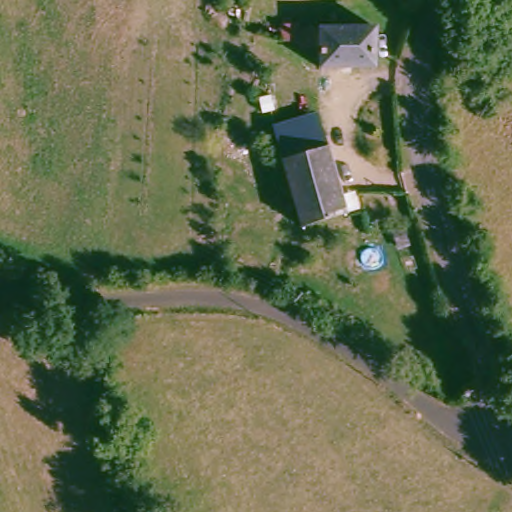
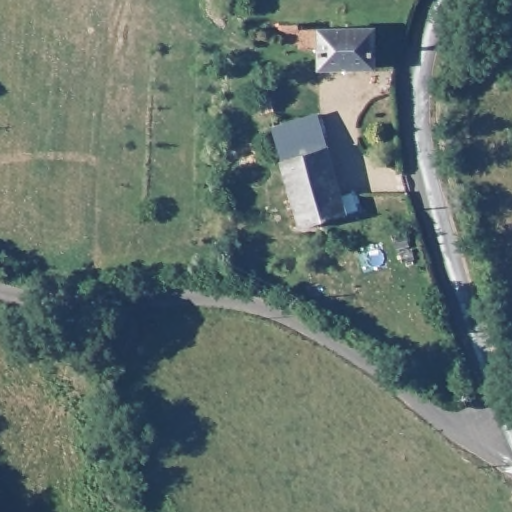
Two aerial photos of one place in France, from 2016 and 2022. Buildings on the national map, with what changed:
unchanged [(305,25),(305,29),(380,29),(381,67),(325,70),(325,49),(305,50),(303,42),(288,43),(286,25),(305,25)]
unchanged [(278,135),(322,122),(331,150),(288,165),(278,135)]
unchanged [(288,165),(331,150),(350,221),(307,236),(288,165)]

